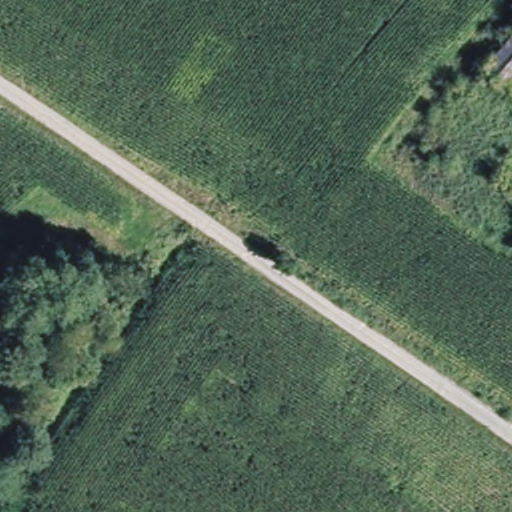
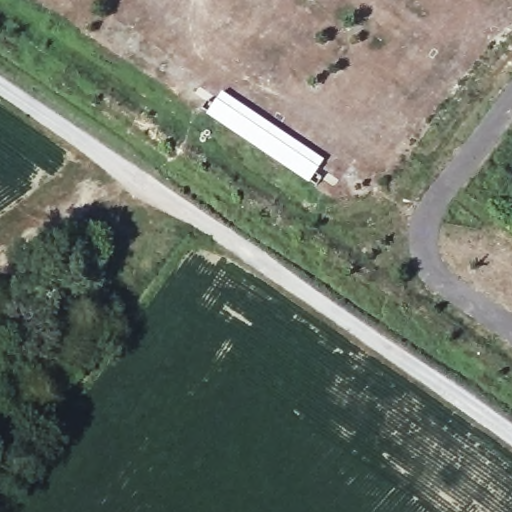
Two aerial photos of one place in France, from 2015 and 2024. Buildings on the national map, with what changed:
demolished [(512,35),(512,88),(485,65),(512,35)]
new [(325,160),(310,184),(207,116),(222,93),(325,160)]

